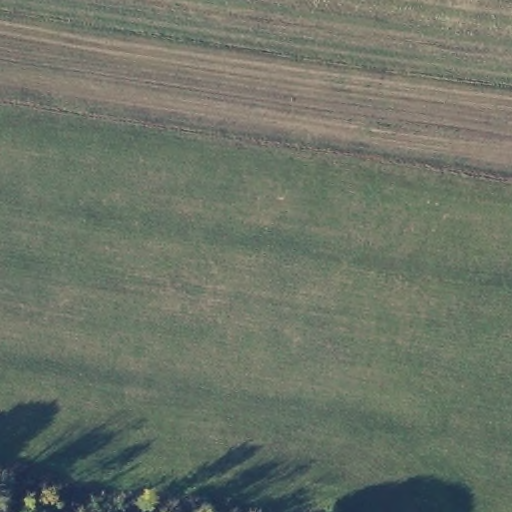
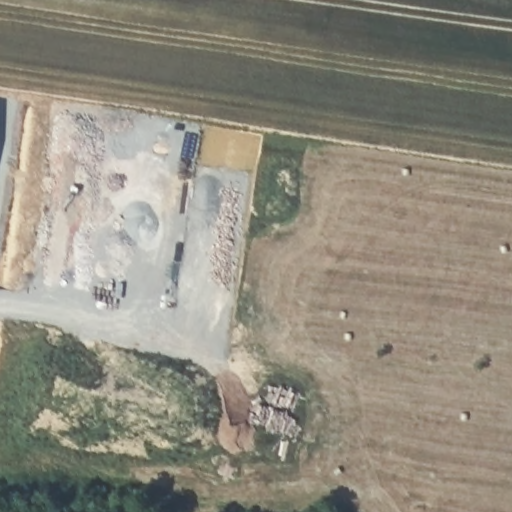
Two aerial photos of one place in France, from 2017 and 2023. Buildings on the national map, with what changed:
unchanged [(18,510),(65,507),(66,512),(18,512),(18,510)]

